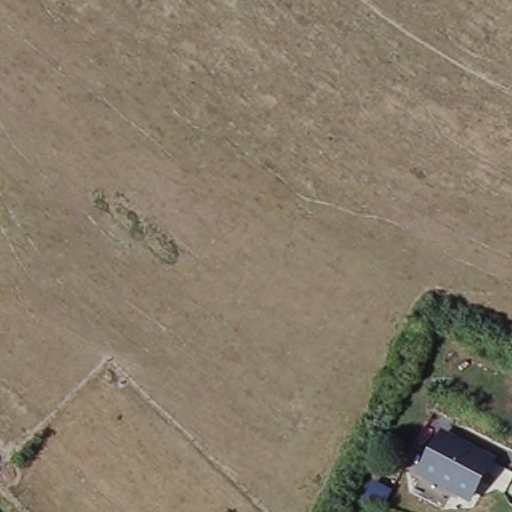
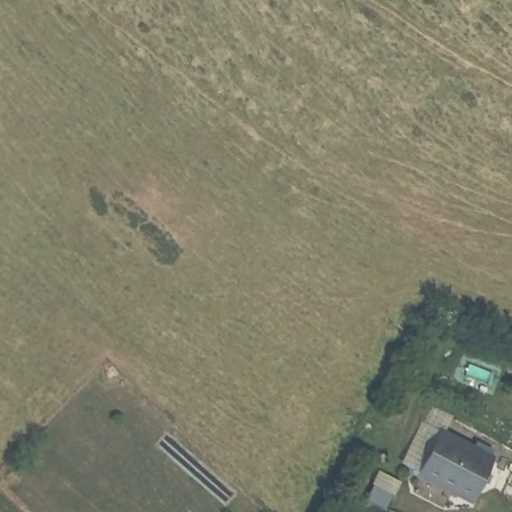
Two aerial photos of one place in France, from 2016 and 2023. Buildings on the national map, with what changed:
unchanged [(439,440),(493,464),(477,500),(418,478),(439,440)]

